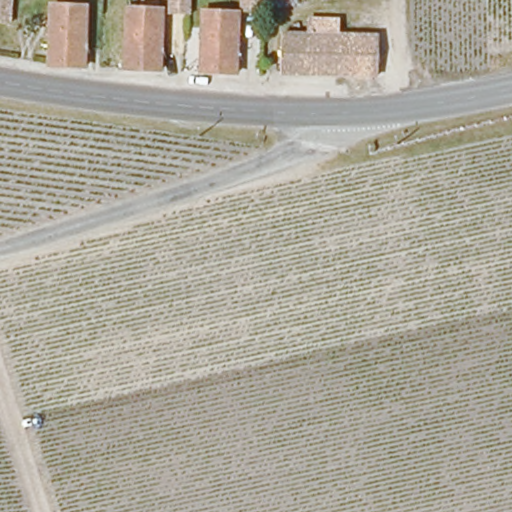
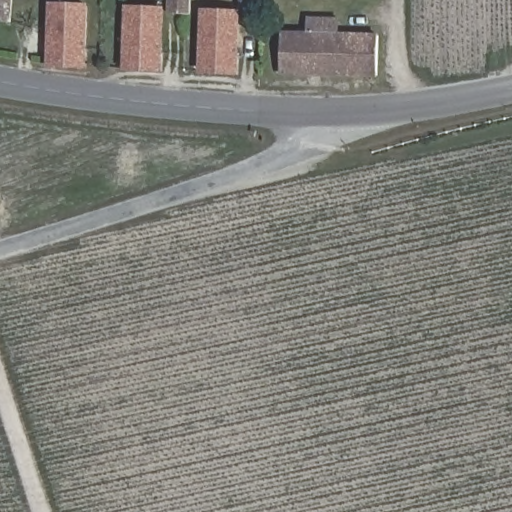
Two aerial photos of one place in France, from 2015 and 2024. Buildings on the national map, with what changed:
unchanged [(0,21),(0,0),(14,0),(12,22),(0,21)]
unchanged [(197,15),(176,13),(177,12),(178,0),(198,0),(197,11),(197,15)]
unchanged [(271,11),(247,10),(248,8),(248,0),(271,0),(271,6),(271,11)]
unchanged [(69,67),(51,67),(53,20),(54,5),(89,6),(89,17),(88,55),(88,67),(69,67)]
unchanged [(145,69),(127,69),(132,15),(132,9),(166,10),(166,13),(164,57),(163,70),(145,69)]
unchanged [(220,71),(203,70),(207,12),(241,14),(239,60),(237,72),(220,71)]
unchanged [(378,73),(282,73),(283,31),(380,34),(378,73)]

